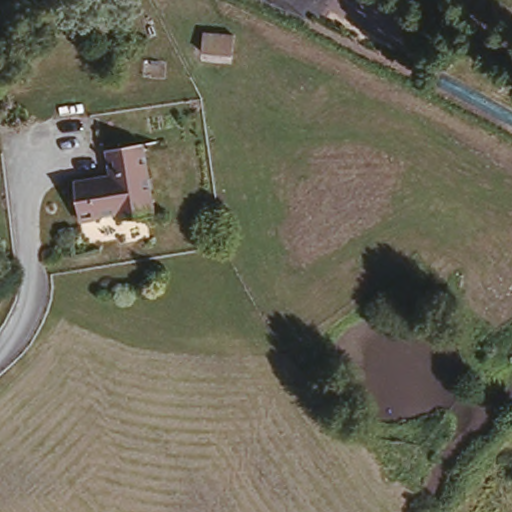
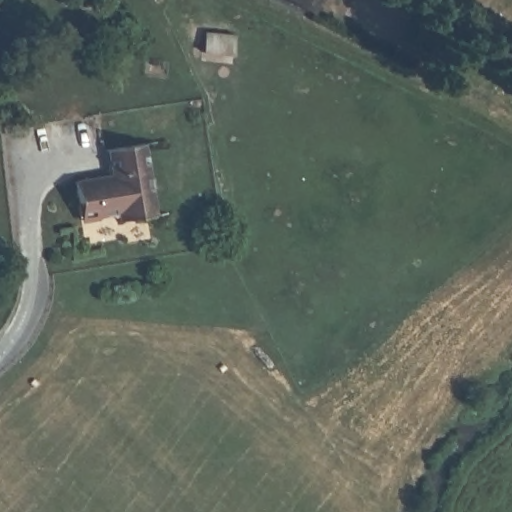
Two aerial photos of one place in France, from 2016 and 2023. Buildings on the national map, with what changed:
unchanged [(237,35),(237,56),(202,53),(202,30),(237,35)]
unchanged [(123,171),(121,145),(155,141),(162,217),(129,219),(127,209),(85,213),(81,176),(123,171)]

